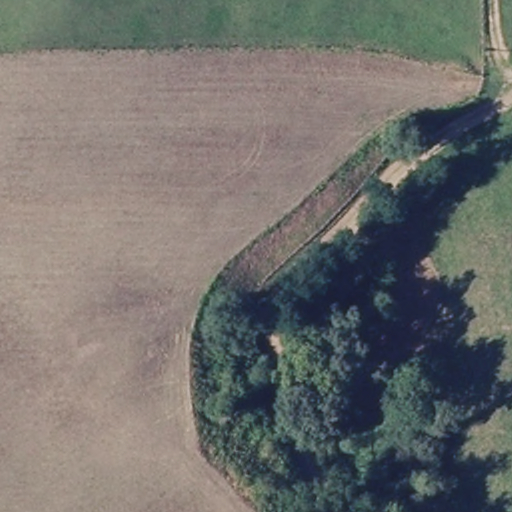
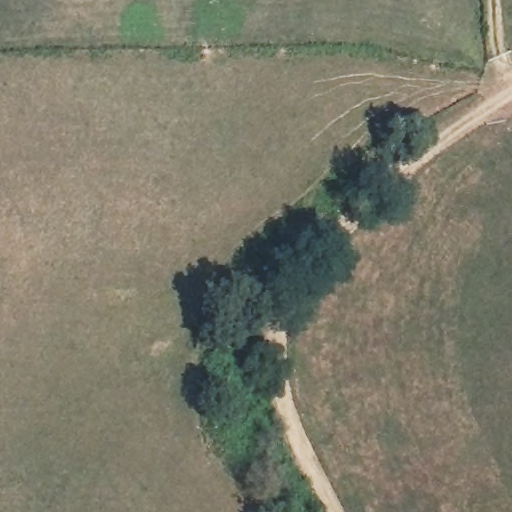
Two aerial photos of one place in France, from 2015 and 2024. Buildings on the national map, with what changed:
[]

